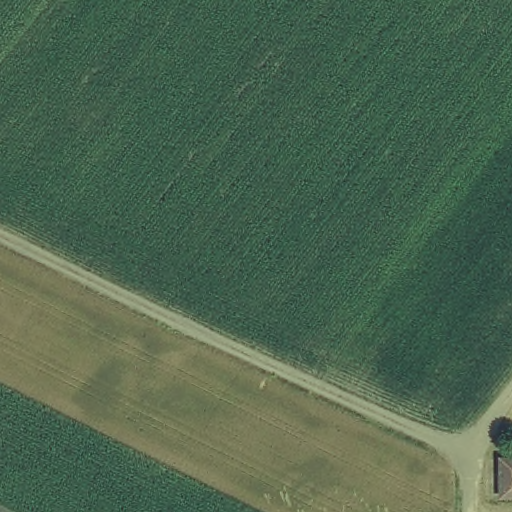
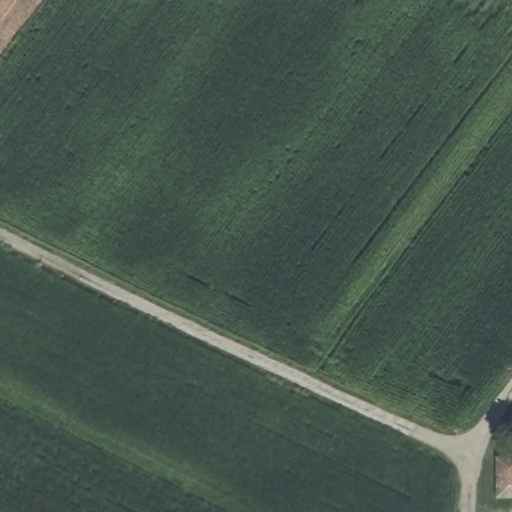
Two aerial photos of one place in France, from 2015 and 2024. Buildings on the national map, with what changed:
unchanged [(492,462),(512,462),(512,498),(493,498),(492,462)]

